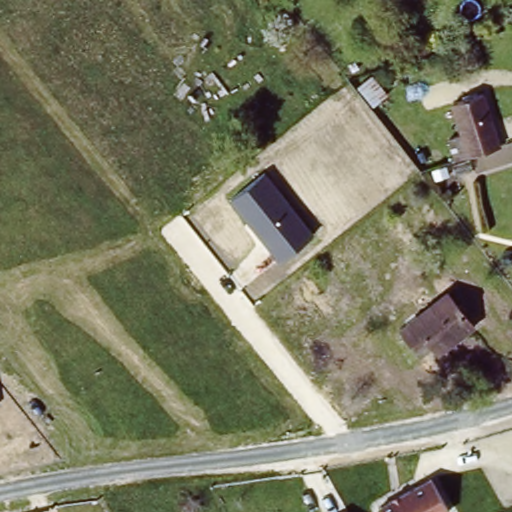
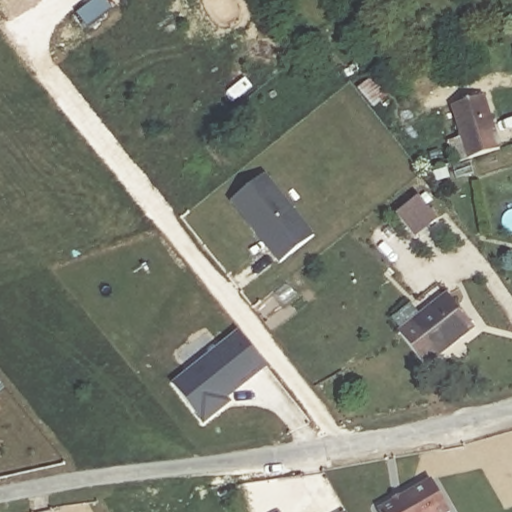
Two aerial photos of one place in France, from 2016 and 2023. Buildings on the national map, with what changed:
unchanged [(486,87),(503,145),(451,160),(446,136),(459,132),(451,99),(486,87)]
unchanged [(266,174),(314,233),(279,260),(232,199),(266,174)]
unchanged [(434,345),(418,358),(398,333),(447,295),(472,326),(459,336),(440,352),(434,345)]
new [(239,330),(267,364),(242,385),(239,382),(224,393),(230,401),(204,422),(173,384),(239,330)]
unchanged [(450,512),(382,512),(378,505),(431,476),(452,511),(450,512)]
unchanged [(345,512),(346,511),(346,512),(345,512)]

